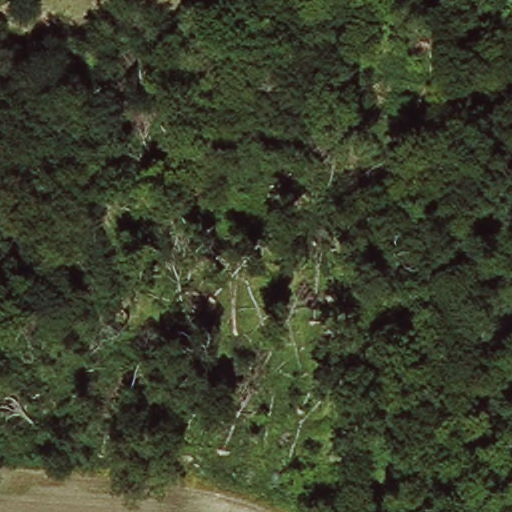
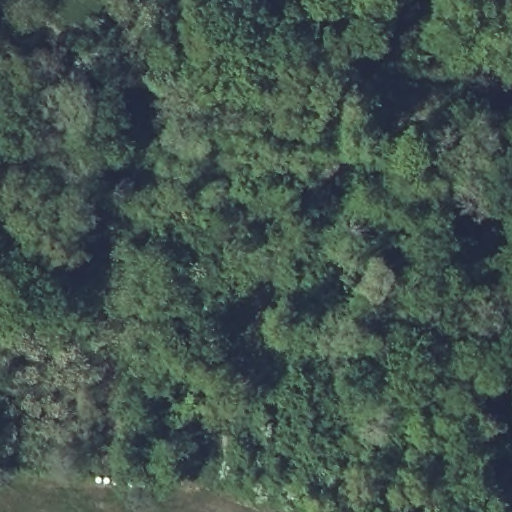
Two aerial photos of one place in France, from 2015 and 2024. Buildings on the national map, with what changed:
[]

